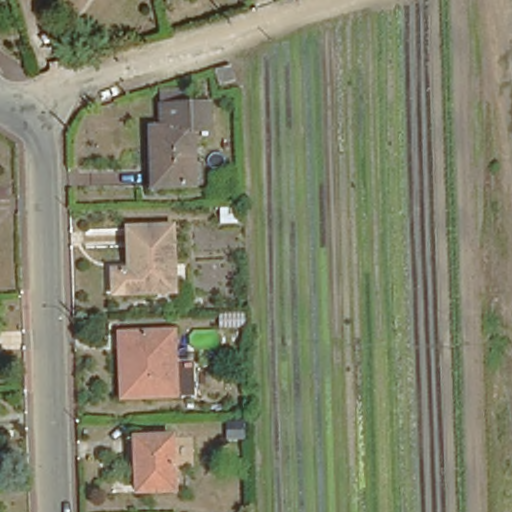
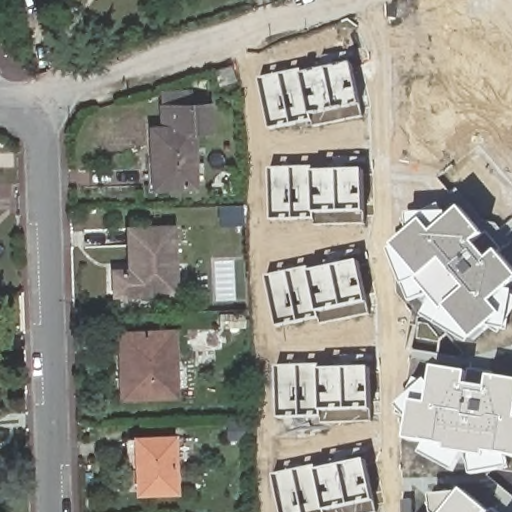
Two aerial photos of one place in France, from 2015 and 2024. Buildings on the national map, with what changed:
unchanged [(237,76),(220,82),(215,65),(232,60),(237,76)]
new [(361,117),(314,125),(313,120),(270,127),(263,82),(352,66),(361,117)]
unchanged [(156,151),(154,118),(166,117),(165,95),(164,80),(192,79),(192,89),(209,88),(209,93),(211,118),(196,119),(199,174),(164,175),(158,176),(156,151)]
new [(272,219),(270,169),(308,168),(308,173),(362,172),(363,222),(272,219)]
unchanged [(242,208),(242,224),(222,225),(222,209),(242,208)]
new [(491,327),(474,341),(472,344),(438,324),(424,316),(433,299),(429,294),(409,301),(404,285),(391,253),(397,249),(394,246),(409,234),(410,214),(448,214),(453,218),(462,208),(512,269),(512,288),(509,290),(512,290),(512,308),(508,330),(491,327)]
unchanged [(127,229),(171,227),(174,292),(111,295),(110,266),(128,265),(127,229)]
new [(320,318),(278,325),(267,279),(357,263),(367,313),(322,322),(320,318)]
unchanged [(243,314),(243,327),(218,328),(217,315),(243,314)]
unchanged [(119,349),(118,333),(172,331),(174,394),(130,396),(120,396),(119,349)]
new [(324,423),(324,415),(281,419),(277,367),(320,365),(320,369),(368,369),(371,420),(324,423)]
new [(507,455),(510,467),(474,474),(471,453),(464,453),(456,473),(422,454),(427,443),(408,440),(412,419),(399,405),(429,380),(432,385),(435,367),(512,380),(512,456),(507,455)]
unchanged [(135,492),(133,438),(170,437),(174,490),(135,492)]
new [(376,511),(372,512),(327,512),(317,469),(366,460),(376,511)]
new [(461,493),(464,489),(490,512),(433,512),(432,496),(461,493)]

